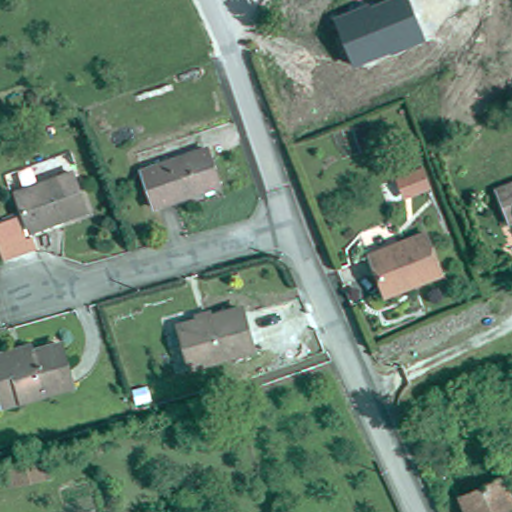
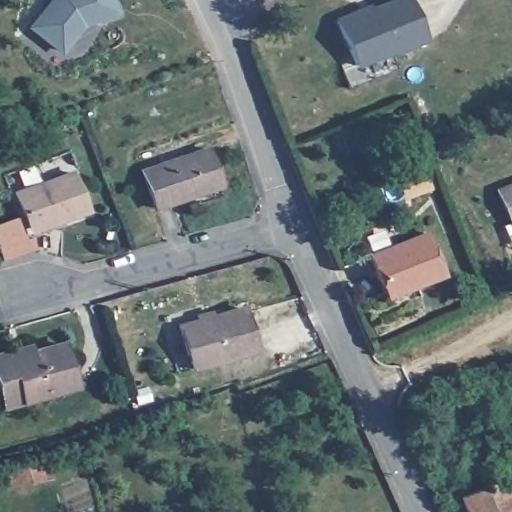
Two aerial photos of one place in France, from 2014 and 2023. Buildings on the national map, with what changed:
new [(117,15),(82,28),(60,52),(27,26),(49,0),(112,0),(117,15)]
unchanged [(426,42),(394,55),(392,52),(354,67),(333,18),(370,3),(371,7),(389,0),(409,0),(426,42)]
unchanged [(157,209),(144,172),(208,149),(221,187),(157,209)]
unchanged [(33,232),(19,194),(75,173),(89,211),(33,232)]
unchanged [(512,190),(512,227),(511,227),(498,195),(512,190)]
new [(19,217),(27,238),(32,236),(36,248),(4,260),(0,251),(0,224),(19,217)]
unchanged [(384,294),(368,255),(425,232),(442,275),(414,287),(386,299),(384,294)]
unchanged [(193,369),(181,327),(246,309),(257,350),(193,369)]
unchanged [(6,406),(0,386),(0,357),(13,353),(15,359),(64,345),(76,386),(6,406)]
unchanged [(466,512),(461,501),(455,489),(484,476),(489,488),(504,481),(512,499),(512,512),(466,512)]

